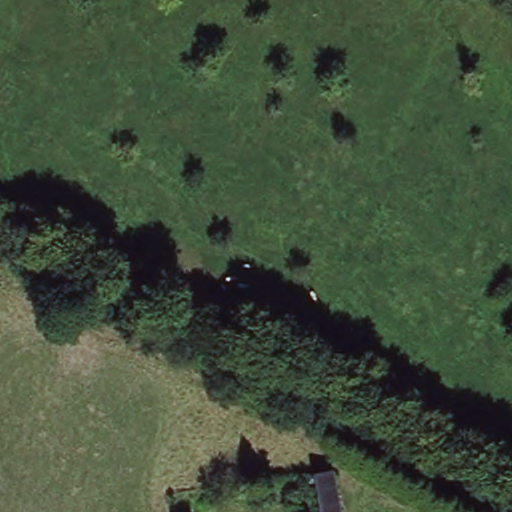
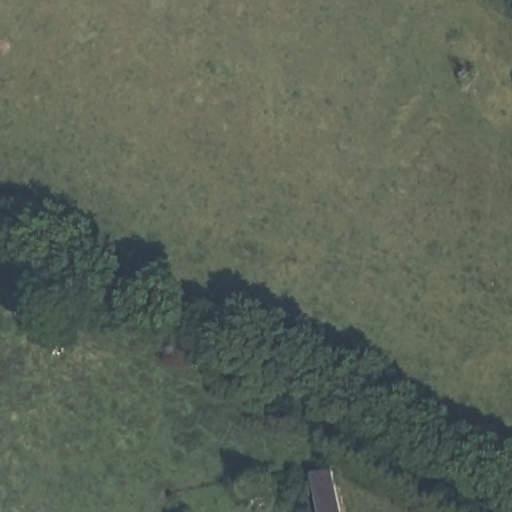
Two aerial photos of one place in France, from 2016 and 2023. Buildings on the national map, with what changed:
unchanged [(342,512),(326,512),(320,478),(305,481),(305,472),(319,470),(334,468),(342,512)]

